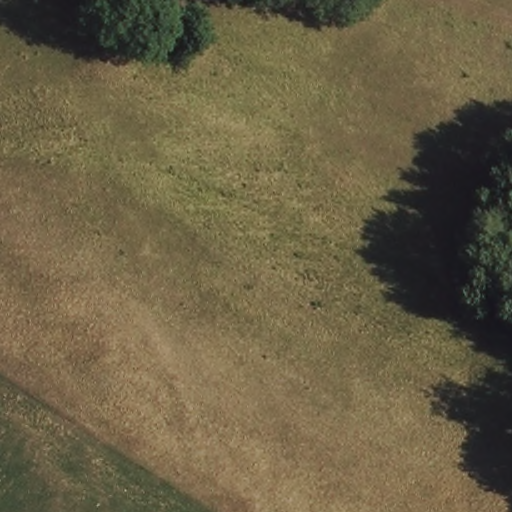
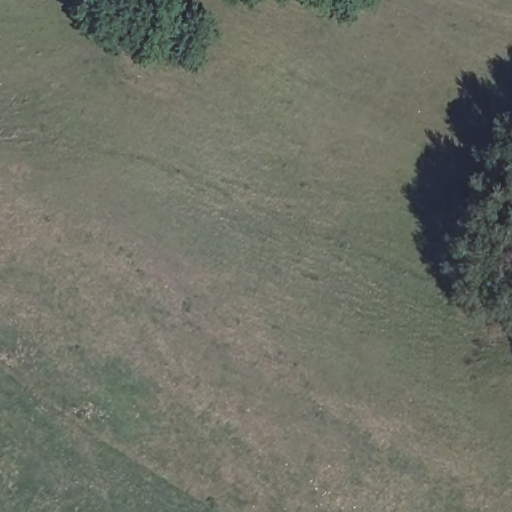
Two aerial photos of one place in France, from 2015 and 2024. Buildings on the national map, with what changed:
[]

